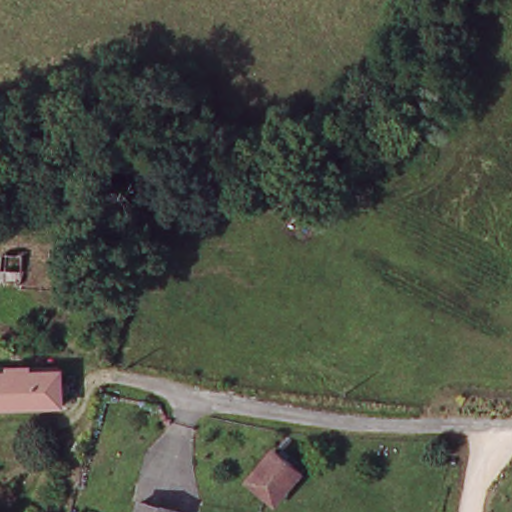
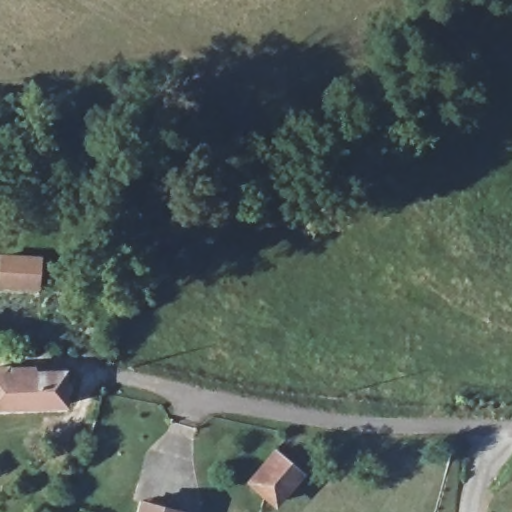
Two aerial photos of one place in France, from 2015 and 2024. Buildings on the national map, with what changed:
new [(40,291),(0,288),(0,257),(41,259),(40,291)]
unchanged [(65,406),(0,404),(0,362),(40,362),(40,370),(67,370),(67,380),(75,380),(75,394),(66,394),(65,406)]
unchanged [(252,487),(272,453),(300,470),(277,504),(252,487)]
unchanged [(137,512),(140,502),(176,512),(137,512)]

